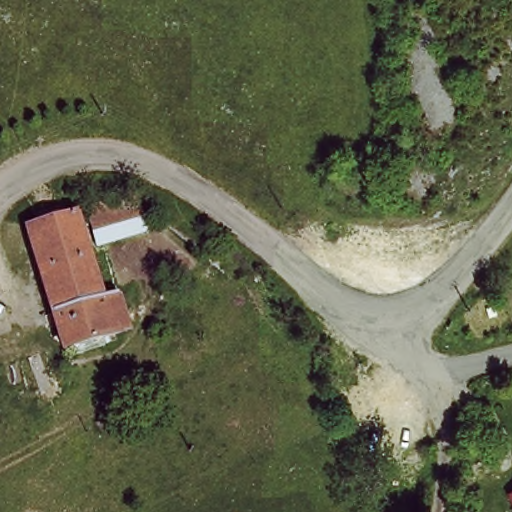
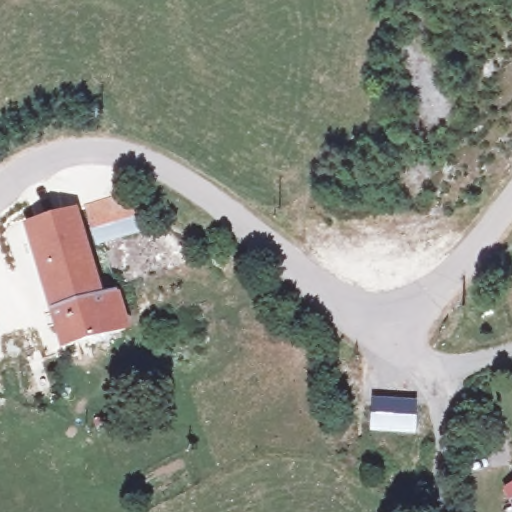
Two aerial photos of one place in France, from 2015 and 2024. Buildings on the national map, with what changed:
unchanged [(87,207),(135,200),(138,222),(90,229),(87,207)]
unchanged [(69,214),(87,295),(108,291),(117,331),(49,344),(23,223),(69,214)]
new [(369,433),(369,414),(370,397),(417,398),(417,416),(416,434),(369,433)]
unchanged [(503,488),(512,483),(512,508),(503,488)]

